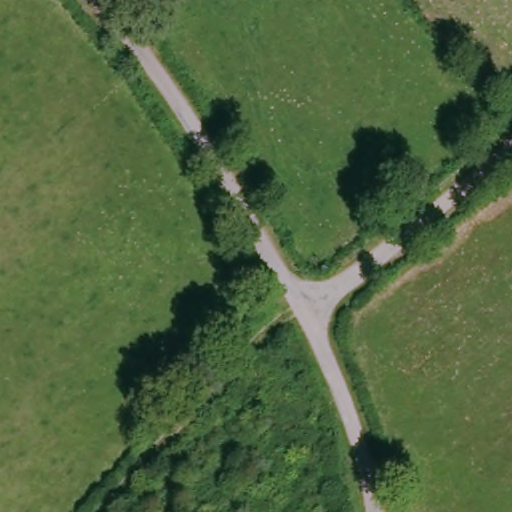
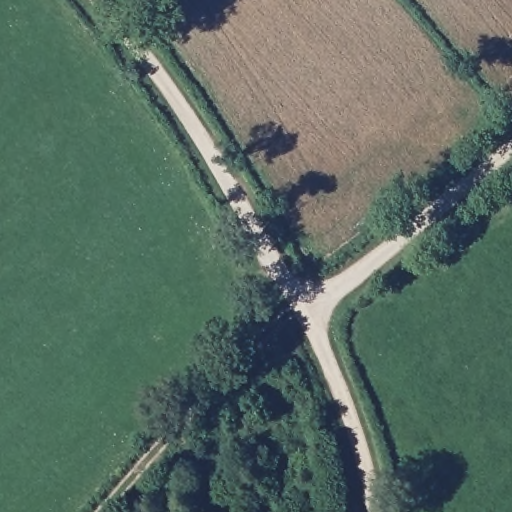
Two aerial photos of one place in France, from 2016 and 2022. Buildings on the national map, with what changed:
[]

